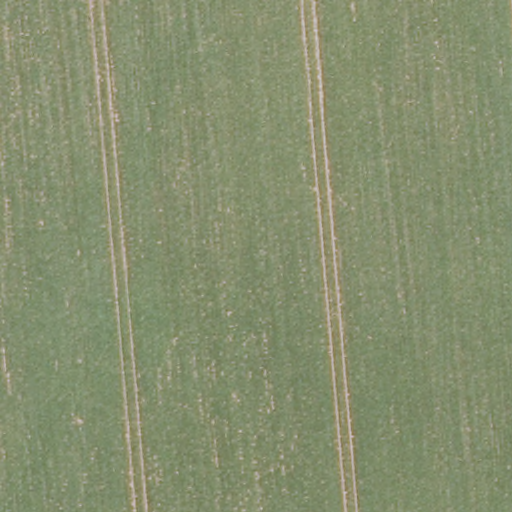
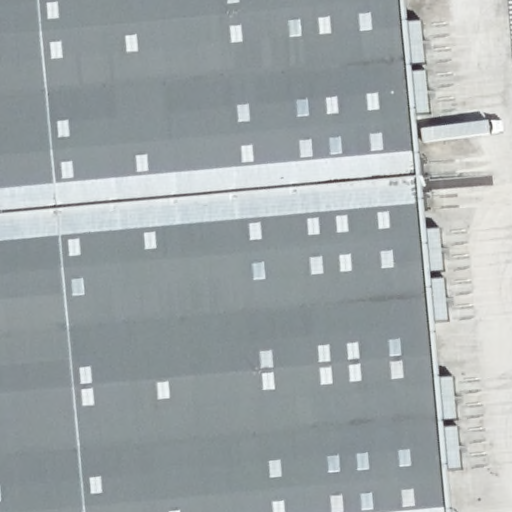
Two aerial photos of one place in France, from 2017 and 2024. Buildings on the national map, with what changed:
new [(454,512),(0,512),(0,0),(406,0),(454,512)]

